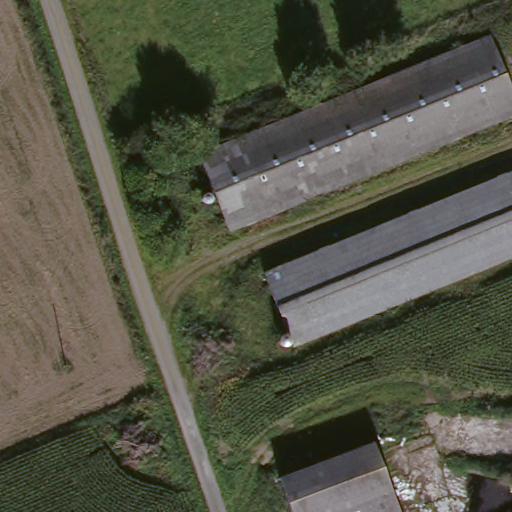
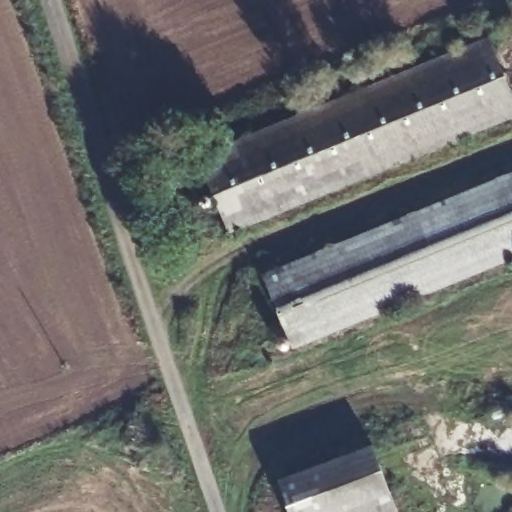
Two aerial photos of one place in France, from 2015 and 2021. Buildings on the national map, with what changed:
unchanged [(512,112),(512,113),(224,239),(193,165),(481,40),(512,112)]
unchanged [(512,257),(294,352),(264,284),(512,176),(512,257)]
unchanged [(275,485),(365,447),(393,512),(286,512),(275,485)]

